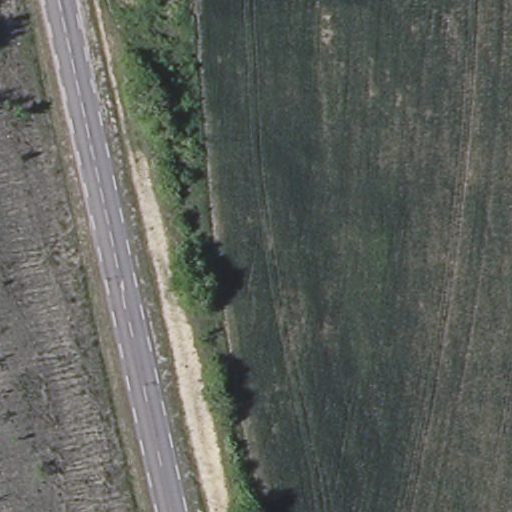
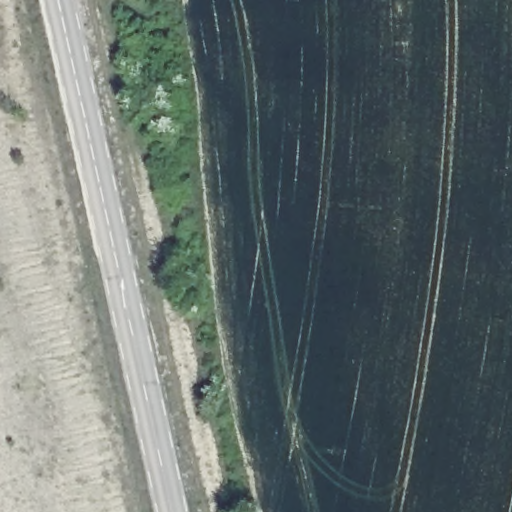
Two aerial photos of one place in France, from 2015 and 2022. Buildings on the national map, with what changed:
[]

